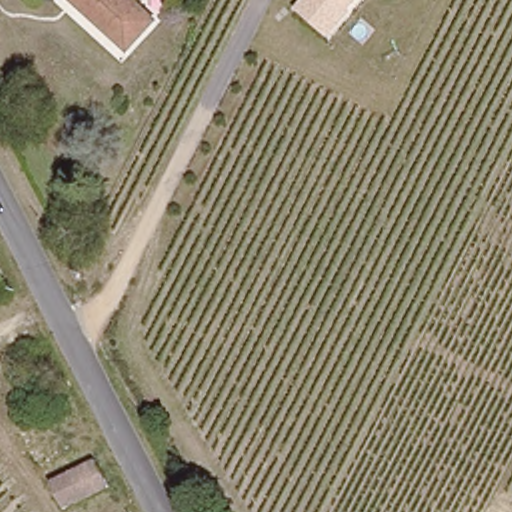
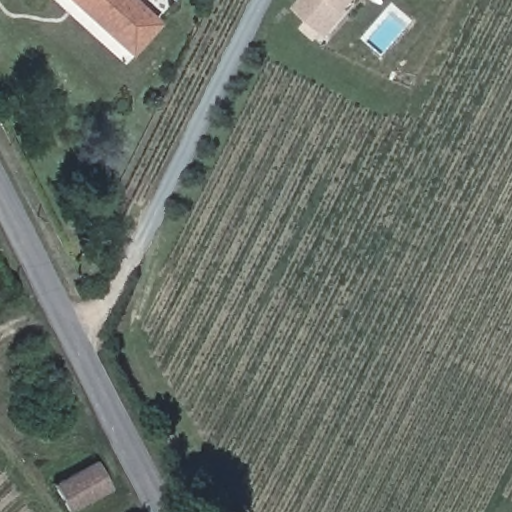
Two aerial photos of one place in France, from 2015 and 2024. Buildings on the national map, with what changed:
unchanged [(156,23),(129,52),(73,0),(131,0),(156,23)]
unchanged [(325,40),(292,10),(301,0),(362,0),(325,40)]
unchanged [(52,482),(97,457),(111,483),(66,508),(52,482)]

